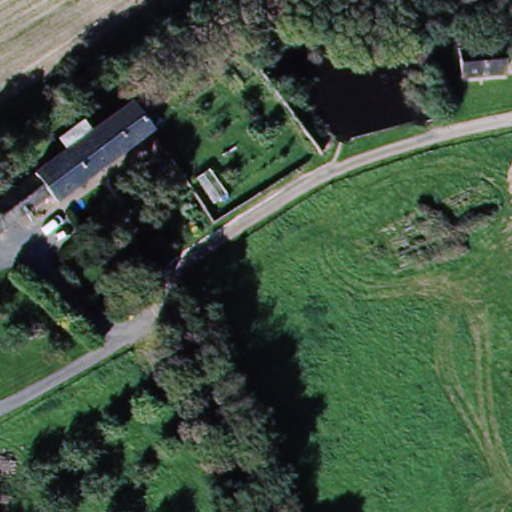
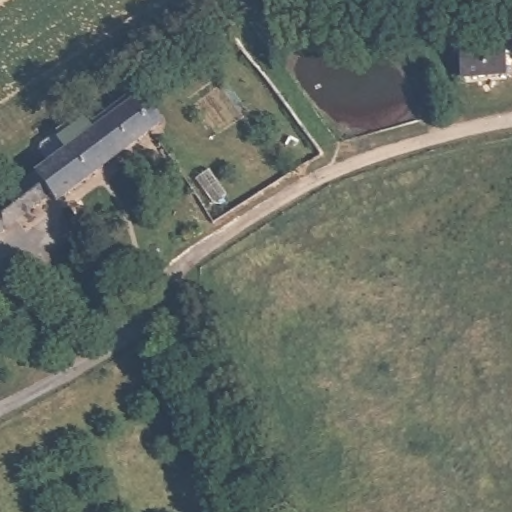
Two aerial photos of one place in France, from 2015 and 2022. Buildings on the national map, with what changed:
unchanged [(506,71),(461,72),(460,42),(504,42),(506,71)]
unchanged [(0,198),(69,147),(64,139),(87,121),(96,131),(149,92),(168,122),(58,201),(53,195),(9,227),(0,212),(0,198)]
unchanged [(0,233),(0,212),(9,227),(0,233)]

